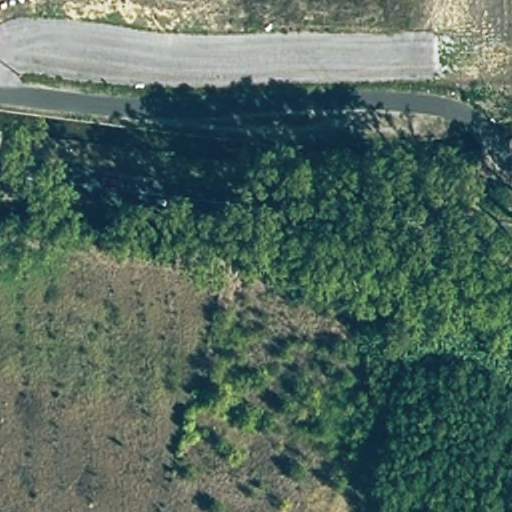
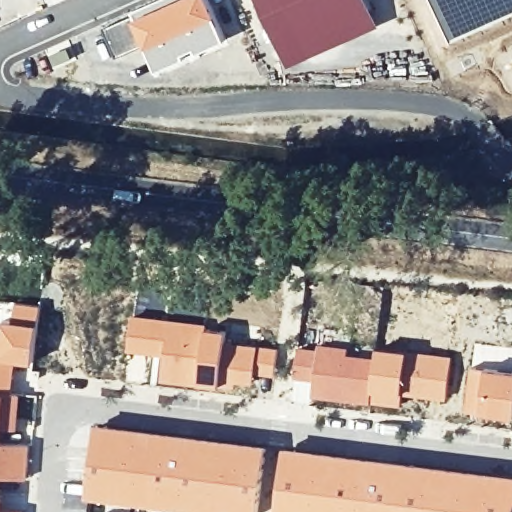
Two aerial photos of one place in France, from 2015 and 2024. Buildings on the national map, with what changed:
new [(154,0),(210,0),(229,43),(158,75),(144,46),(132,14),(131,11),(154,0)]
new [(371,6),(279,47),(259,0),(368,0),(371,6)]
new [(451,44),(431,0),(512,0),(512,15),(451,44)]
new [(132,14),(144,46),(117,58),(103,25),(132,14)]
new [(134,307),(138,285),(166,289),(208,293),(204,319),(201,318),(201,321),(165,317),(166,312),(134,307)]
new [(35,305),(32,360),(10,358),(9,376),(12,376),(11,393),(0,393),(0,302),(8,303),(35,305)]
new [(133,312),(143,314),(165,317),(201,321),(207,323),(207,326),(200,383),(159,379),(163,355),(126,349),(133,312)]
new [(207,326),(229,329),(228,340),(222,385),(200,383),(207,326)]
new [(228,340),(279,347),(275,376),(256,374),(255,383),(236,382),(236,385),(222,385),(228,340)]
new [(296,346),(318,347),(312,395),(311,402),(292,400),(296,346)]
new [(318,347),(349,347),(348,353),(375,356),(372,402),(312,395),(318,347)]
new [(375,356),(376,347),(408,350),(404,393),(402,405),(372,402),(375,356)]
new [(408,350),(451,356),(448,397),(404,393),(408,350)]
new [(512,371),(512,413),(467,408),(471,368),(512,371)]
new [(0,428),(0,393),(11,393),(16,394),(14,418),(14,428),(9,428),(0,428)]
new [(177,430),(269,443),(259,512),(202,512),(87,496),(97,422),(177,430)]
new [(26,478),(6,477),(6,470),(0,470),(0,443),(28,445),(26,478)]
new [(512,475),(512,512),(276,512),(284,445),(512,475)]
new [(75,505),(75,508),(86,510),(86,512),(63,512),(63,504),(75,505)]

